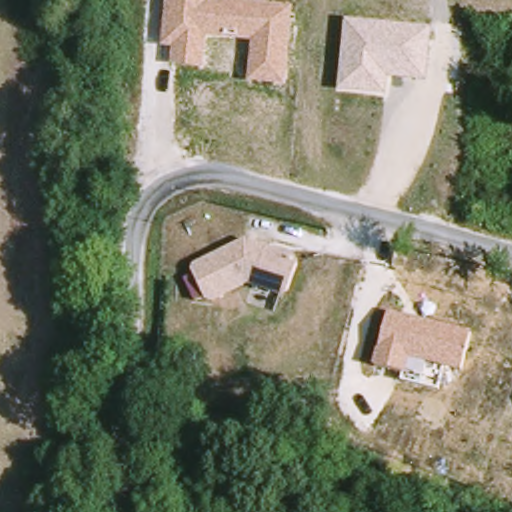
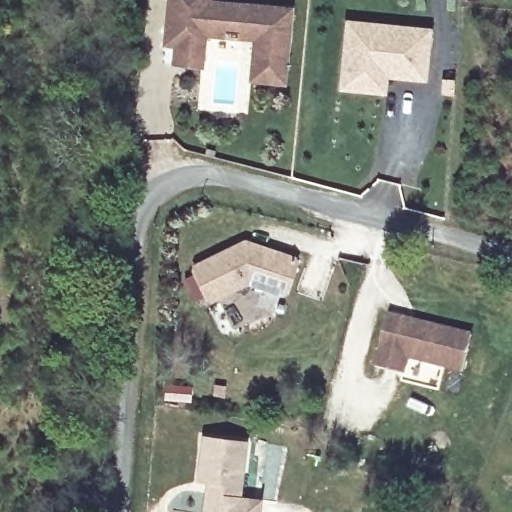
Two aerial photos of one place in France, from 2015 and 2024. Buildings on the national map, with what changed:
unchanged [(287,86),(249,82),(252,41),(206,38),(203,69),(171,67),(172,48),(162,47),(166,0),(213,0),(213,1),(292,7),(287,86)]
unchanged [(427,82),(387,78),(386,96),(340,92),(345,19),(431,28),(427,82)]
unchanged [(282,294),(247,283),(212,301),(205,299),(192,274),(194,267),(244,242),(251,245),(266,249),(293,258),(297,265),(288,291),(282,294)]
unchanged [(402,379),(403,372),(376,365),(390,313),(471,333),(462,368),(445,365),(438,388),(402,379)]
new [(200,512),(202,492),(202,482),(194,481),(198,437),(242,442),(236,496),(240,497),(257,499),(256,512),(200,512)]

